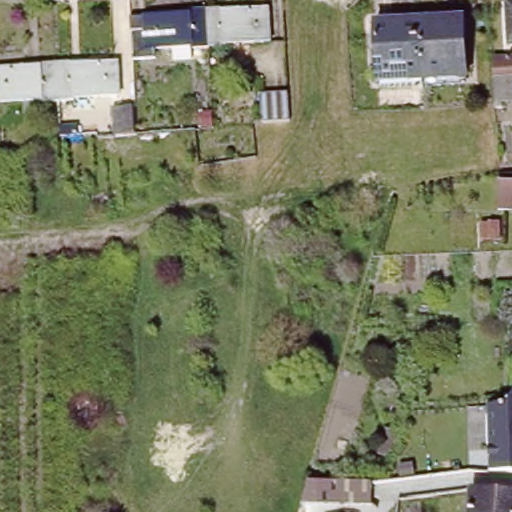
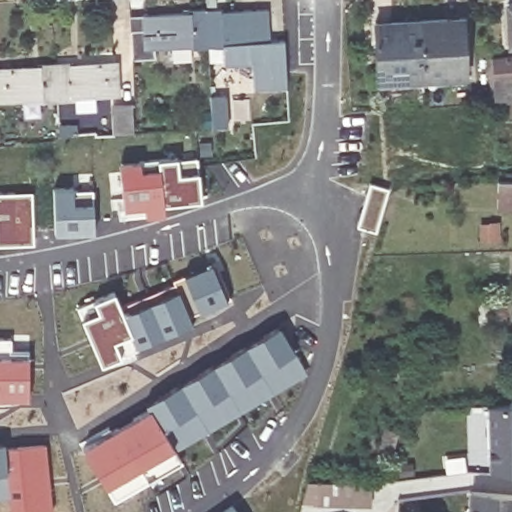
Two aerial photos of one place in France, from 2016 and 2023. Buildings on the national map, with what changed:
unchanged [(512,3),(512,44),(509,44),(507,3),(512,3)]
unchanged [(190,11),(190,8),(205,7),(208,45),(192,45),(192,42),(152,45),(153,55),(132,55),(130,27),(145,27),(145,14),(190,11)]
unchanged [(267,7),(268,39),(223,41),(223,44),(208,45),(205,7),(220,7),(221,10),(267,7)]
unchanged [(461,25),(463,80),(422,82),(418,26),(461,25)]
unchanged [(418,26),(422,82),(375,85),(374,29),(418,26)]
new [(223,41),(268,39),(283,40),(283,59),(285,87),(253,89),(252,63),(224,64),(223,44),(223,41)]
unchanged [(493,74),(492,58),(512,57),(512,74),(493,74)]
unchanged [(116,65),(117,97),(72,100),(72,104),(57,104),(55,66),(71,65),(72,68),(116,65)]
unchanged [(41,67),(55,66),(57,104),(42,105),(42,102),(0,105),(0,72),(41,70),(41,67)]
demolished [(288,90),(290,119),(262,121),(259,92),(288,90)]
unchanged [(502,100),(503,107),(495,107),(495,101),(502,100)]
unchanged [(131,105),(132,132),(115,134),(113,106),(131,105)]
new [(211,143),(212,156),(202,156),(202,144),(211,143)]
new [(201,200),(162,204),(158,159),(177,157),(177,160),(196,158),(197,168),(201,200)]
new [(164,214),(144,215),(124,218),(118,163),(158,159),(162,204),(143,206),(163,204),(164,214)]
unchanged [(497,205),(497,176),(512,176),(512,205),(497,205)]
new [(72,187),(72,190),(92,190),(93,232),(54,234),(55,229),(52,189),(72,187)]
new [(0,246),(0,193),(14,192),(32,191),(32,199),(33,236),(34,245),(20,245),(0,246)]
new [(215,262),(230,299),(227,300),(227,301),(188,317),(174,284),(172,280),(215,262)]
new [(152,343),(137,350),(119,307),(137,300),(147,295),(156,291),(174,284),(188,317),(192,326),(177,333),(165,338),(152,343)]
new [(113,292),(119,307),(137,350),(100,365),(76,308),(113,292)]
new [(79,444),(106,429),(108,433),(117,428),(131,420),(148,410),(145,405),(162,395),(180,385),(196,376),(213,366),(230,356),(246,347),(262,337),(280,327),(290,345),(303,367),(307,375),(290,384),(273,394),(273,395),(257,403),(240,413),(225,422),(207,432),(190,442),(175,451),(177,455),(181,463),(165,472),(113,503),(82,448),(79,444)]
new [(10,350),(28,350),(27,399),(10,398),(0,398),(0,339),(10,339),(10,350)]
unchanged [(505,390),(512,390),(512,473),(488,472),(485,404),(505,390)]
new [(3,448),(45,446),(51,508),(15,512),(10,512),(9,498),(0,499),(0,444),(3,444),(3,448)]
unchanged [(376,478),(375,500),(302,497),(306,485),(376,478)]
unchanged [(501,512),(467,509),(470,490),(512,493),(512,512),(501,512)]
new [(235,512),(223,512),(232,506),(235,512)]
unchanged [(467,512),(467,509),(501,512),(467,512)]

